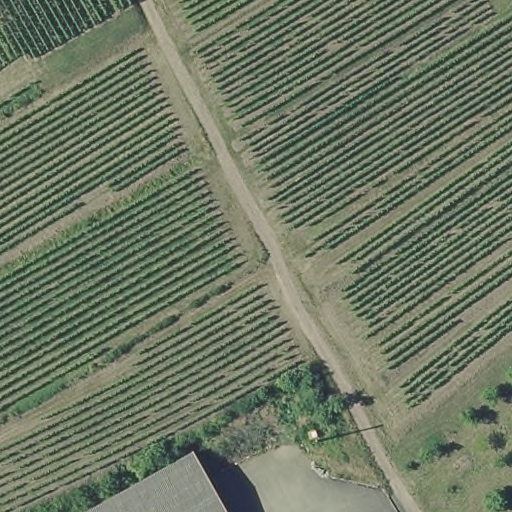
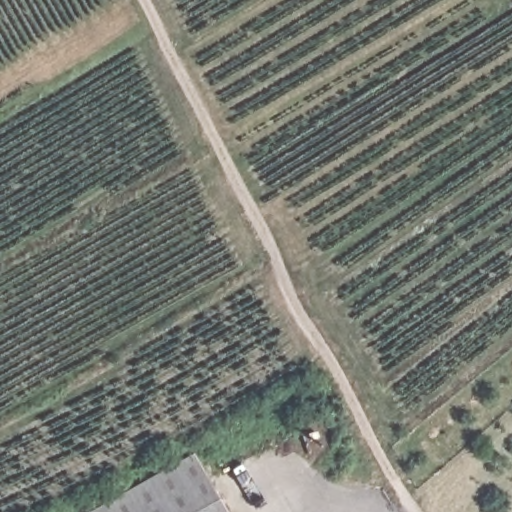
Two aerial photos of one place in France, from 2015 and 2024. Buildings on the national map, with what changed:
unchanged [(227,512),(91,512),(193,454),(227,512)]

